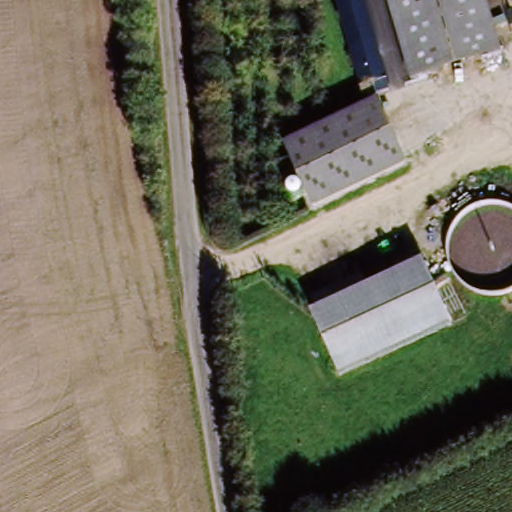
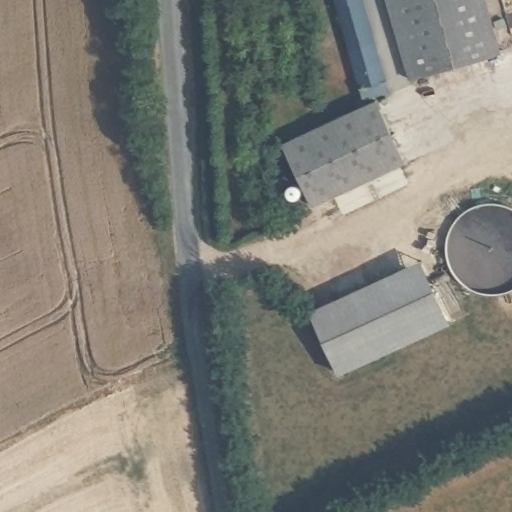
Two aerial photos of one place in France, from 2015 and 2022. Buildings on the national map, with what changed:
unchanged [(365,106),(334,0),(361,0),(390,99),(365,106)]
unchanged [(413,87),(388,0),(481,0),(500,62),(413,87)]
unchanged [(287,152),(378,110),(406,172),(317,215),(287,152)]
unchanged [(452,326),(338,377),(310,312),(422,258),(452,326)]

